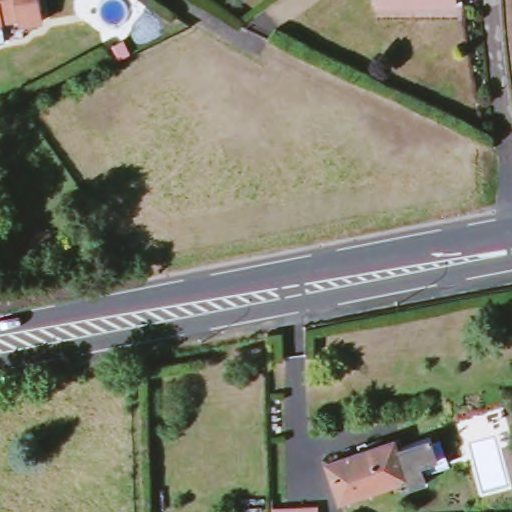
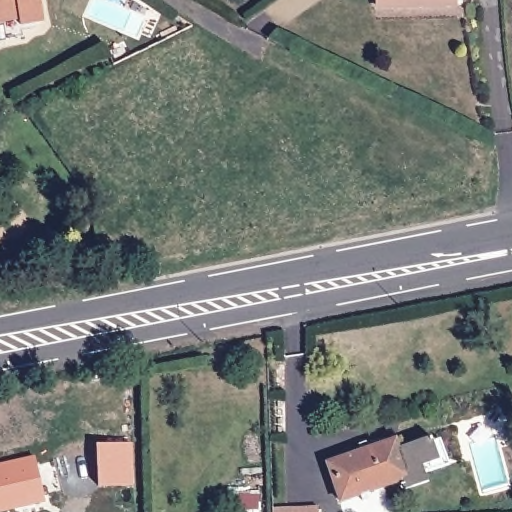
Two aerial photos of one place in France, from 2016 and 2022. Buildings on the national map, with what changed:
unchanged [(38,0),(40,17),(15,21),(15,15),(0,17),(0,0),(38,0)]
unchanged [(454,0),(453,6),(376,6),(376,0),(454,0)]
unchanged [(2,36),(0,37),(0,26),(2,36)]
unchanged [(402,436),(404,444),(433,433),(442,457),(425,463),(430,479),(408,487),(405,477),(343,499),(330,462),(391,440),(402,436)]
new [(130,444),(132,484),(97,485),(97,446),(130,444)]
new [(34,457),(44,500),(0,510),(0,465),(34,457)]
unchanged [(317,511),(317,512),(286,512),(317,511)]

